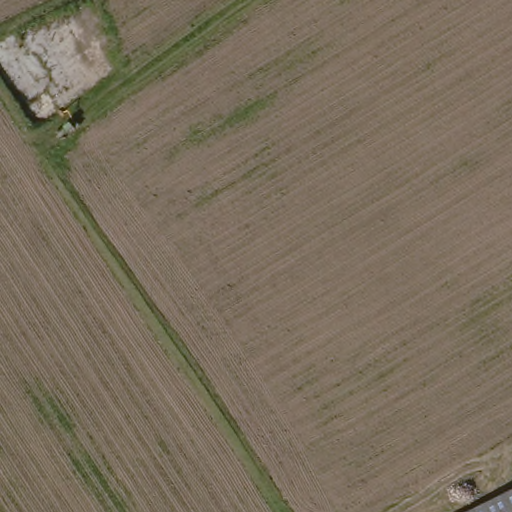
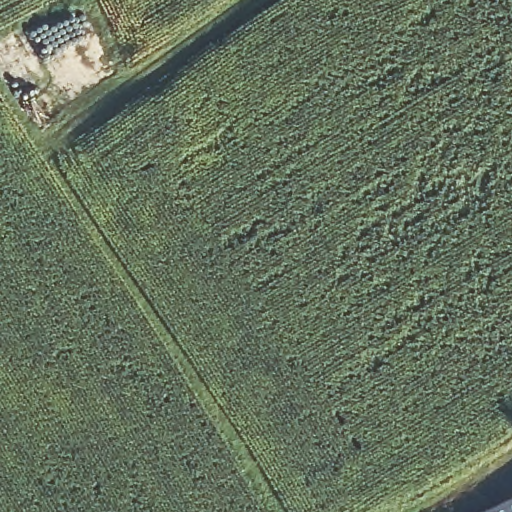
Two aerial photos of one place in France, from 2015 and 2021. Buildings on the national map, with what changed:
unchanged [(512,494),(512,512),(475,512),(512,494)]

